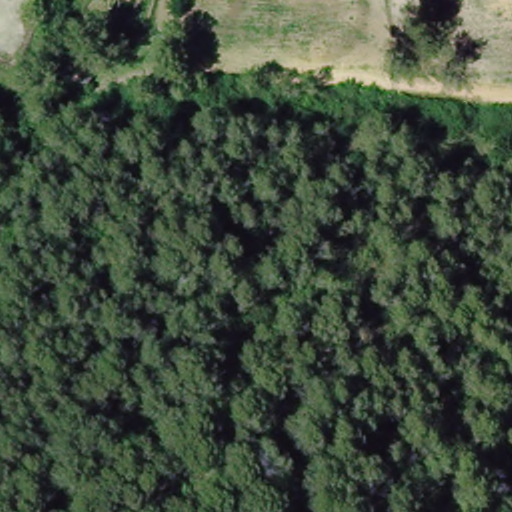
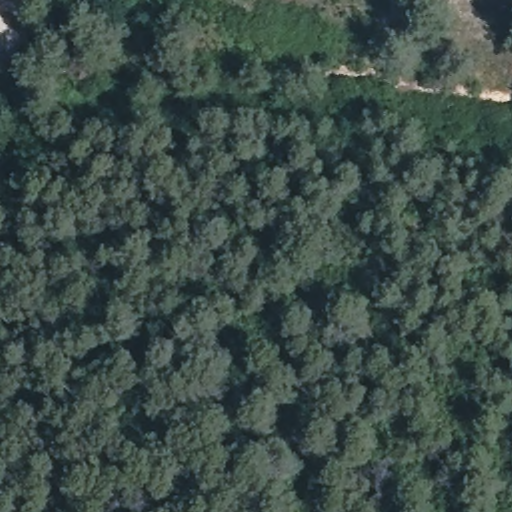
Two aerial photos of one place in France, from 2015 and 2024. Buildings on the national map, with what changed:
[]

